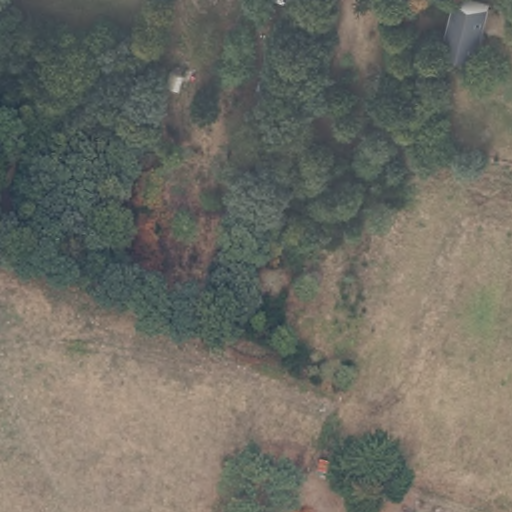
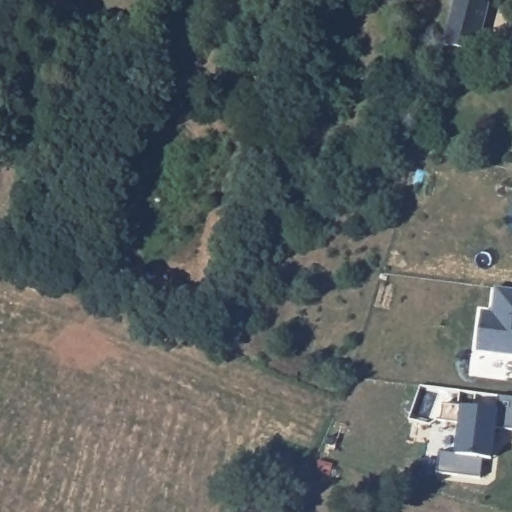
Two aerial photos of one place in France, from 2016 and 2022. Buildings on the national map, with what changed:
unchanged [(454,0),(477,0),(491,3),(479,55),(443,48),(454,0)]
new [(481,312),(493,314),(496,289),(512,291),(512,355),(477,352),(481,312)]
new [(497,411),(499,397),(512,398),(512,429),(497,427),(493,461),(479,459),(478,478),(435,473),(437,452),(455,454),(458,422),(441,420),(443,405),(461,408),(497,411)]

